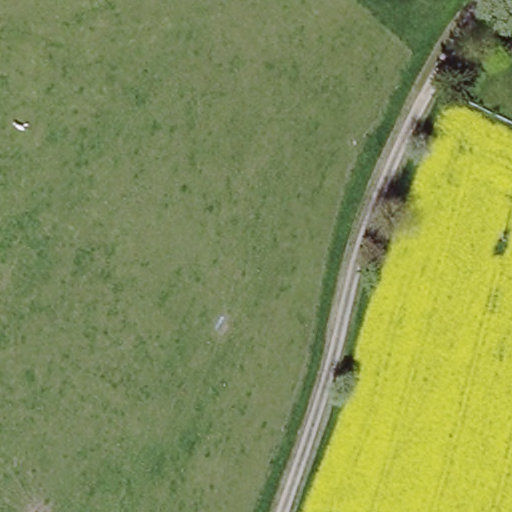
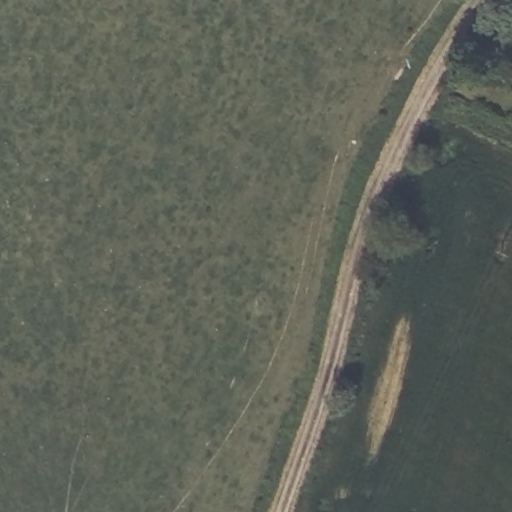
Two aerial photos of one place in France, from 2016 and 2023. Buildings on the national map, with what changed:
unchanged [(512,4),(512,16),(498,38),(486,31),(506,1),(512,4)]

